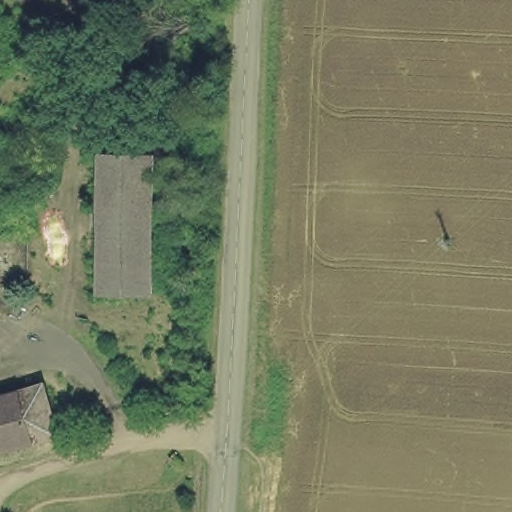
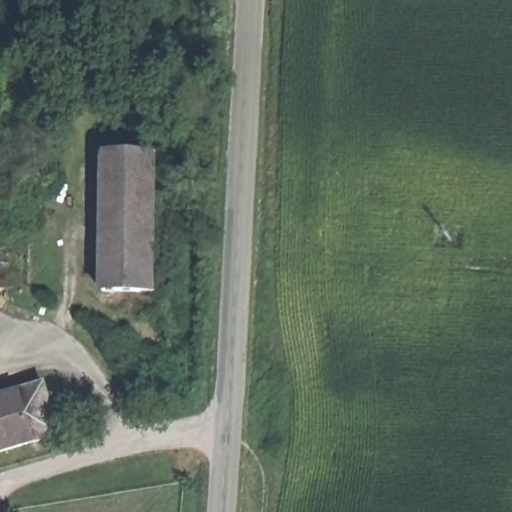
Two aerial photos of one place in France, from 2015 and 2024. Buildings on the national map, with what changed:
unchanged [(105,149),(156,149),(157,289),(106,290),(105,149)]
unchanged [(60,436),(0,453),(0,399),(45,386),(60,436)]

